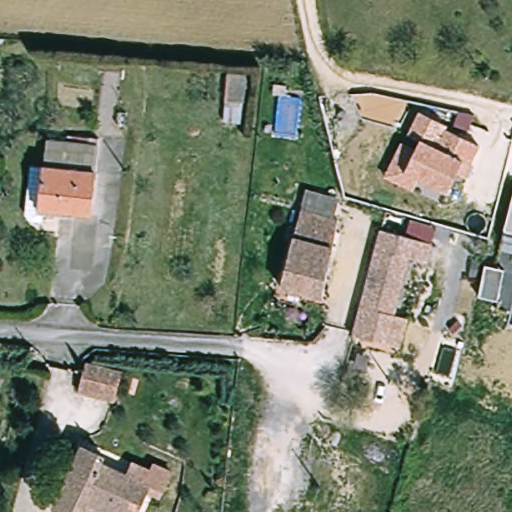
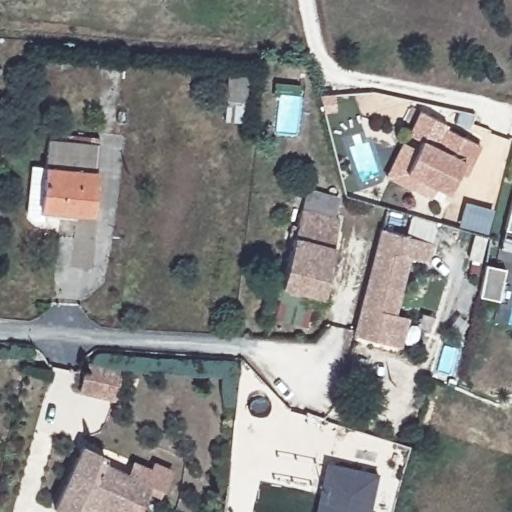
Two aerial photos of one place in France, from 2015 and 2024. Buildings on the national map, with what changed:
unchanged [(234,71),(251,74),(245,121),(228,120),(234,71)]
new [(337,95),(338,112),(327,114),(321,97),(337,95)]
unchanged [(460,169),(450,191),(421,177),(415,190),(386,176),(420,111),(450,126),(462,110),(475,116),(465,135),(480,142),(465,177),(460,169)]
unchanged [(37,209),(45,140),(97,146),(89,215),(37,209)]
unchanged [(300,210),(306,188),(339,196),(333,217),(300,210)]
unchanged [(512,201),(512,229),(505,227),(512,201)]
unchanged [(300,210),(341,218),(325,297),(284,289),(300,210)]
unchanged [(383,342),(359,335),(354,332),(363,299),(381,232),(434,246),(429,265),(408,259),(391,314),(407,319),(398,347),(383,342)]
unchanged [(469,274),(472,254),(491,257),(487,264),(506,268),(499,300),(480,296),(484,273),(469,274)]
unchanged [(123,369),(117,401),(81,393),(89,360),(123,369)]
unchanged [(119,512),(88,498),(81,512),(66,512),(55,507),(85,445),(105,453),(103,462),(152,485),(139,512),(119,512)]
new [(378,472),(369,512),(315,512),(326,461),(378,472)]

